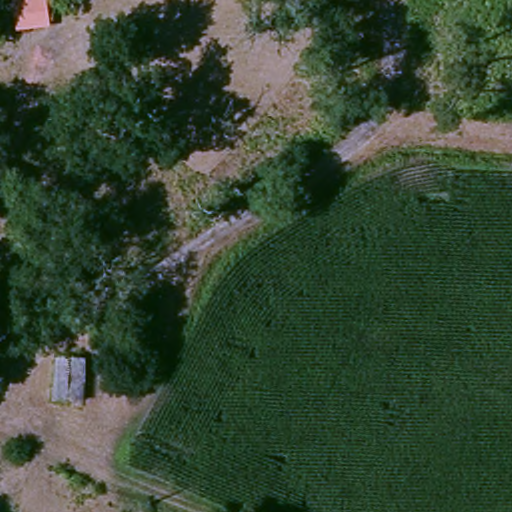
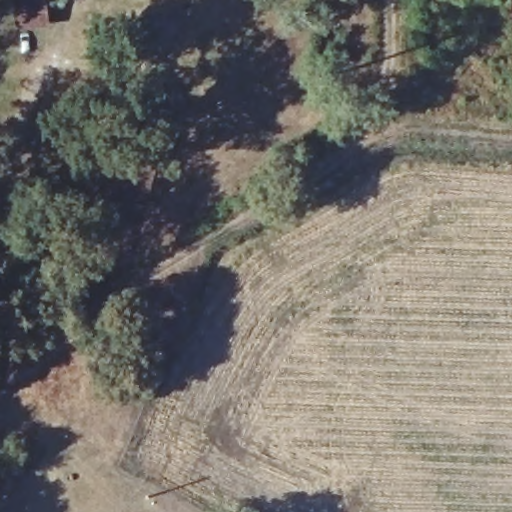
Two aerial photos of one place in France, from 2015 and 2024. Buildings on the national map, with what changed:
unchanged [(15,31),(12,0),(47,0),(50,27),(15,31)]
demolished [(90,360),(81,405),(52,397),(64,351),(90,360)]

